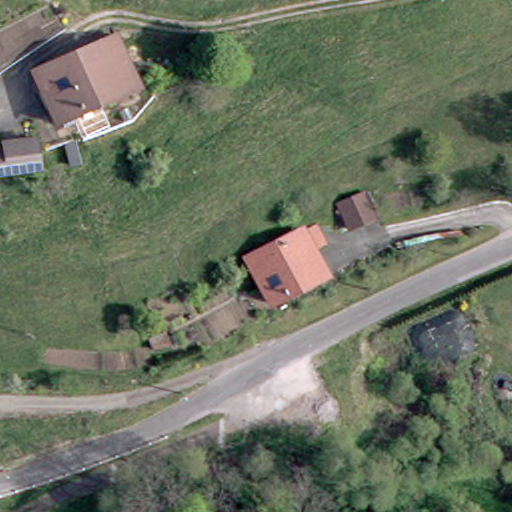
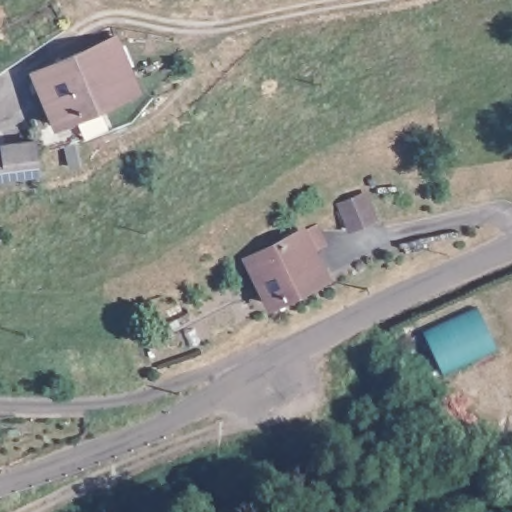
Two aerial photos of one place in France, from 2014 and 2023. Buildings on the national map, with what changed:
unchanged [(103,44),(118,38),(138,90),(50,121),(31,74),(103,44)]
unchanged [(0,180),(0,140),(23,129),(41,160),(0,180)]
unchanged [(374,223),(349,233),(335,204),(359,193),(374,223)]
unchanged [(300,226),(321,268),(265,294),(244,252),(300,226)]

